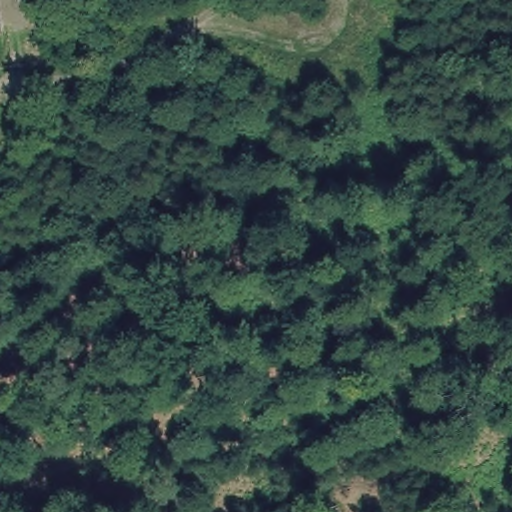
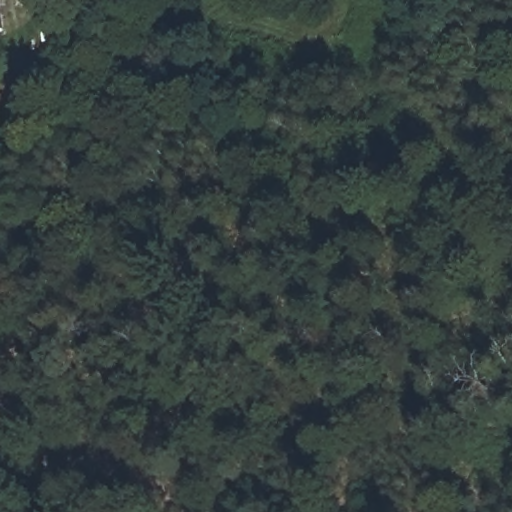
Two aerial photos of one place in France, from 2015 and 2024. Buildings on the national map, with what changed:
unchanged [(6,34),(0,34),(0,0),(3,0),(6,34)]

